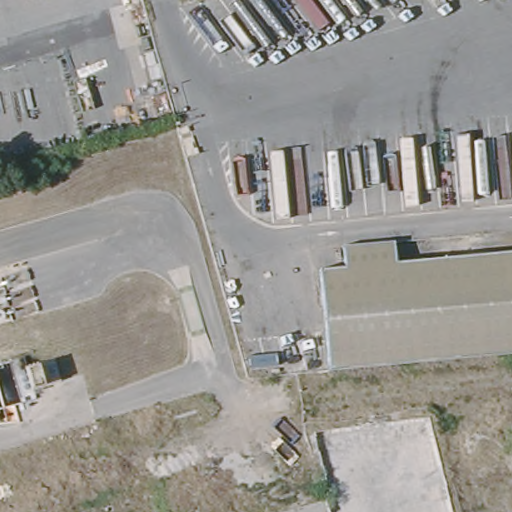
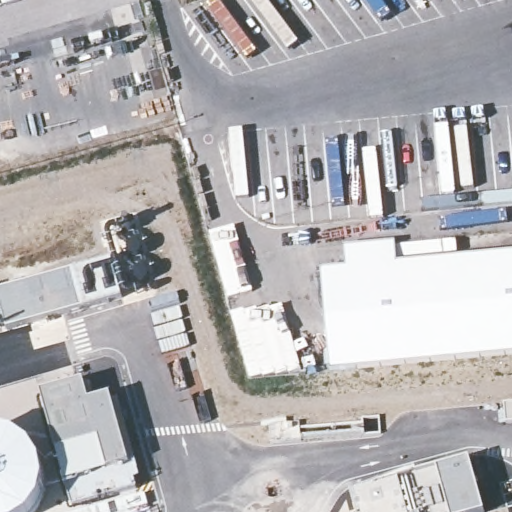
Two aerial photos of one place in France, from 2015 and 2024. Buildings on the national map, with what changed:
unchanged [(323,267),(350,264),(348,245),(396,240),(398,260),(512,251),(512,355),(332,371),(323,267)]
new [(112,259),(124,297),(6,329),(0,309),(0,291),(112,259)]
demolished [(67,383),(39,389),(29,358),(56,354),(67,383)]
new [(84,384),(89,401),(108,397),(110,404),(119,400),(139,479),(133,481),(135,489),(72,509),(66,485),(40,394),(84,384)]
new [(504,403),(512,402),(512,423),(506,424),(504,403)]
new [(351,493),(435,469),(468,461),(484,512),(356,512),(351,493)]

